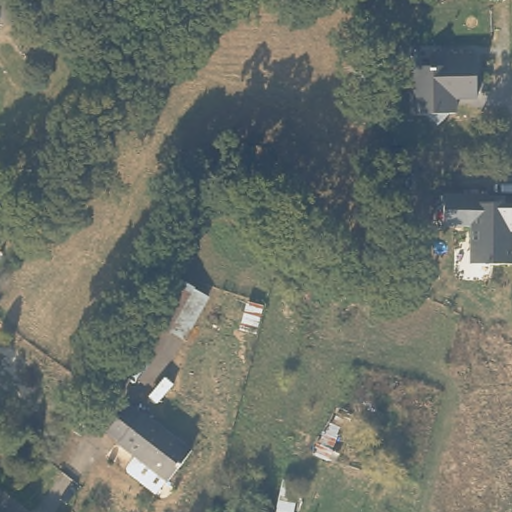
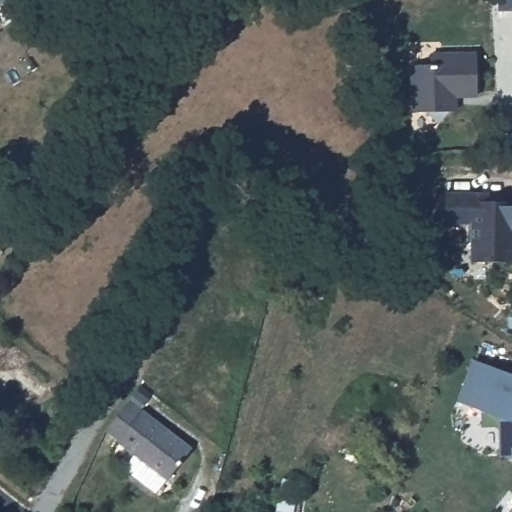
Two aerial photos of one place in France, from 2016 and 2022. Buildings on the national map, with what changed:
unchanged [(477,98),(458,98),(458,111),(410,111),(410,64),(428,63),(428,55),(475,54),(477,98)]
unchanged [(472,263),(471,224),(445,225),(445,195),(508,195),(508,204),(512,204),(512,263),(472,263)]
unchanged [(209,291),(182,338),(147,319),(172,272),(209,291)]
new [(457,401),(472,360),(512,375),(512,457),(498,457),(497,418),(457,401)]
unchanged [(153,415),(156,412),(204,449),(177,484),(128,447),(132,445),(114,432),(137,402),(153,415)]
unchanged [(296,512),(274,512),(281,474),(302,481),(296,512)]

